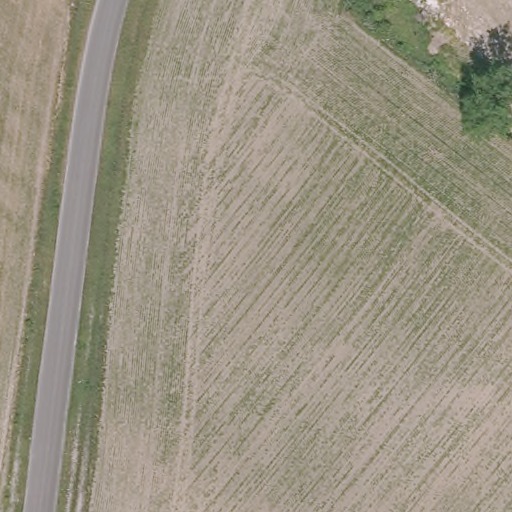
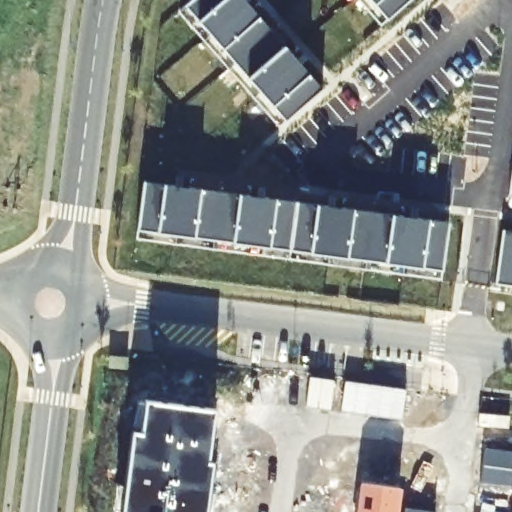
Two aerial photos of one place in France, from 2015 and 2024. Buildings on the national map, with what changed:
new [(178,11),(184,4),(190,0),(244,0),(257,15),(308,73),(321,88),(286,120),(278,126),(179,25),(178,11)]
new [(388,18),(380,24),(359,0),(409,0),(388,18)]
new [(164,184),(428,219),(448,222),(442,270),(440,278),(136,238),(138,228),(143,181),(164,184)]
new [(512,286),(495,283),(502,229),(512,230),(512,286)]
new [(305,406),(309,377),(334,381),(330,410),(305,406)]
new [(406,389),(402,421),(341,410),(344,381),(406,389)]
new [(207,460),(212,461),(205,512),(120,512),(131,429),(139,431),(144,400),(215,409),(207,460)]
new [(481,482),(485,447),(512,452),(512,476),(511,486),(481,482)]
new [(399,512),(356,512),(360,482),(402,488),(399,512)]
new [(432,512),(404,512),(405,507),(432,512)]

